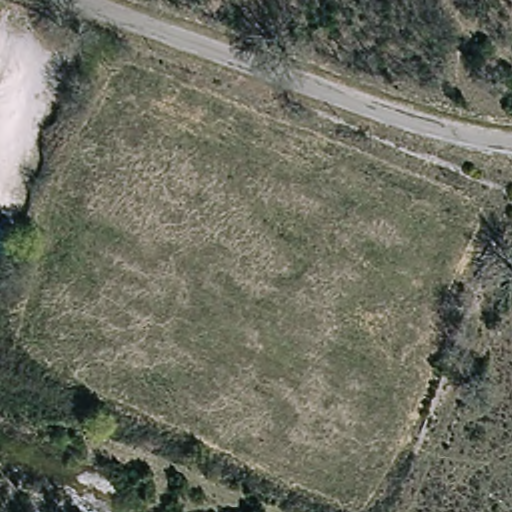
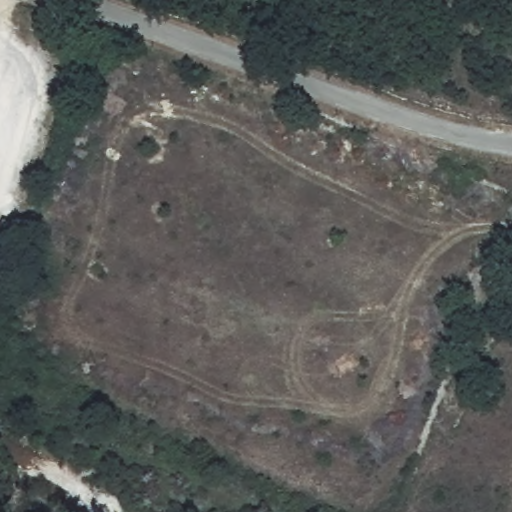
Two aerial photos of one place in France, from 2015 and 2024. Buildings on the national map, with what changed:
[]

